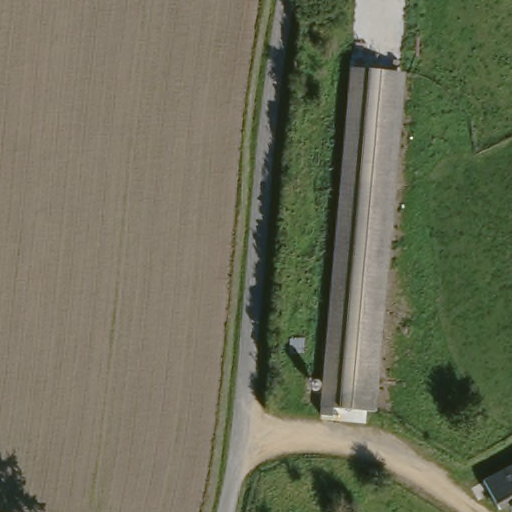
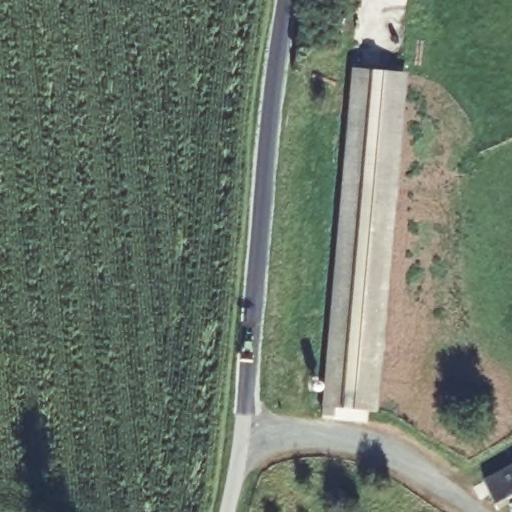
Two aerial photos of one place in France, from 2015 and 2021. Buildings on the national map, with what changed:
unchanged [(355,66),(411,69),(382,410),(341,408),(341,417),(325,414),(355,66)]
unchanged [(512,501),(505,504),(491,478),(512,467),(512,501)]

